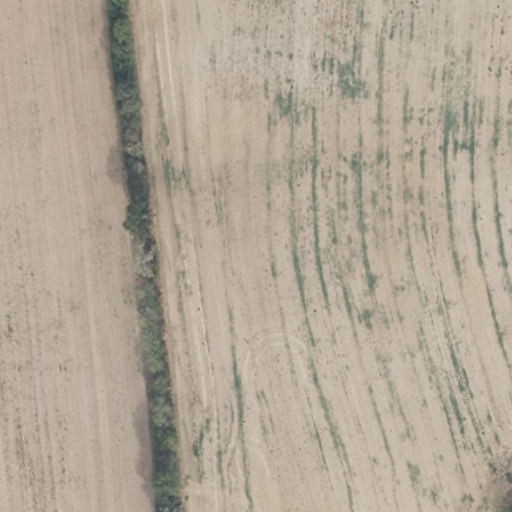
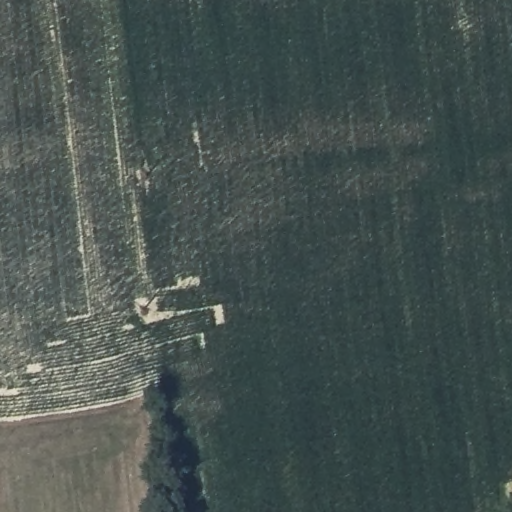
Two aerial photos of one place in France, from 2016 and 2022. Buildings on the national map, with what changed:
[]

